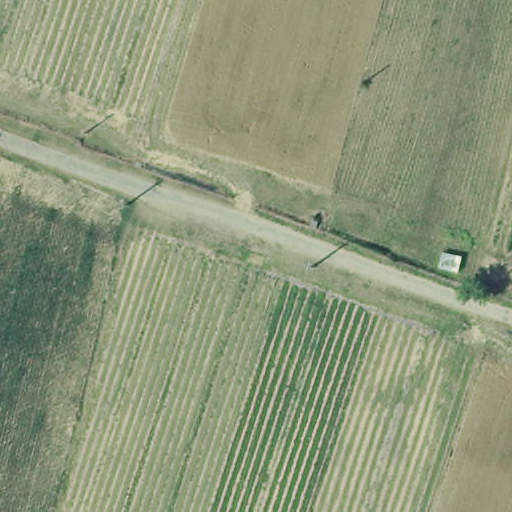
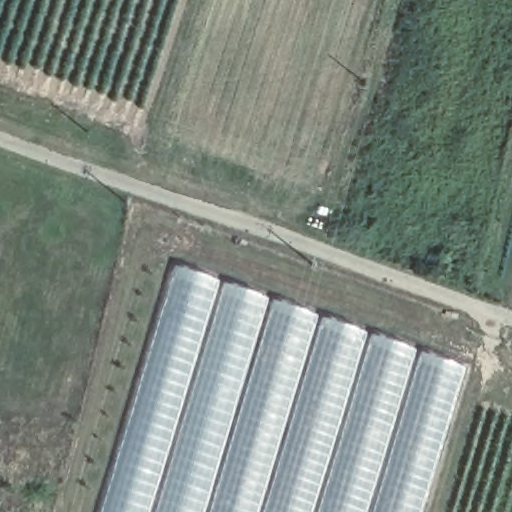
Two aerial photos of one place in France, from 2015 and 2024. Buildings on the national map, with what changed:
new [(467,366),(424,512),(98,512),(173,266),(467,366)]

